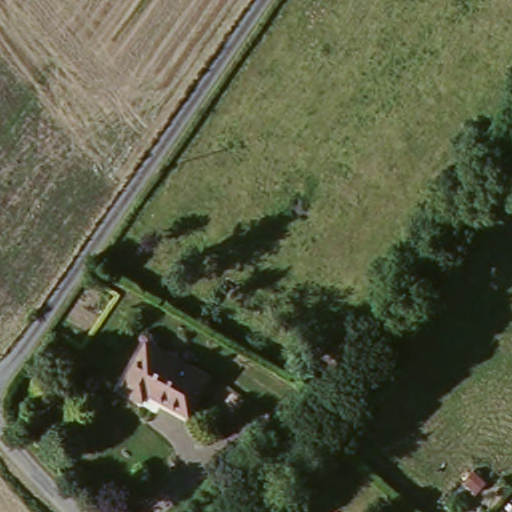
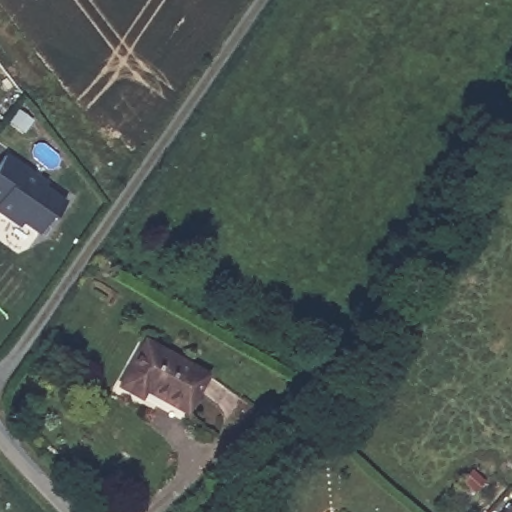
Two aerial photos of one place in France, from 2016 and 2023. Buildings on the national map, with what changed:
new [(66,200),(44,235),(24,225),(21,229),(0,217),(0,165),(6,155),(66,200)]
unchanged [(205,375),(184,412),(146,391),(139,402),(116,388),(144,340),(205,375)]
unchanged [(505,512),(512,505),(512,512),(505,512)]

